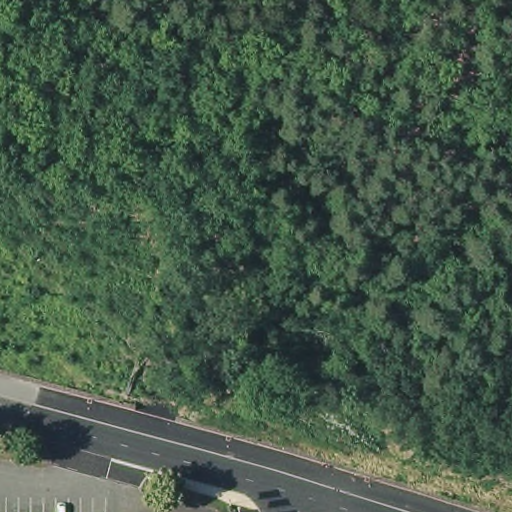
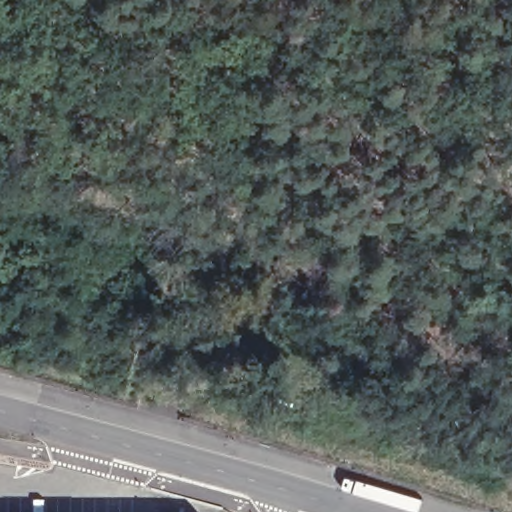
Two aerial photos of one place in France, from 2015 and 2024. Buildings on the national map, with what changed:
[]

